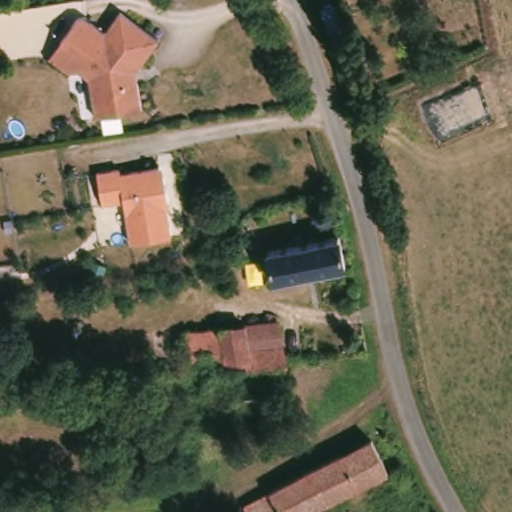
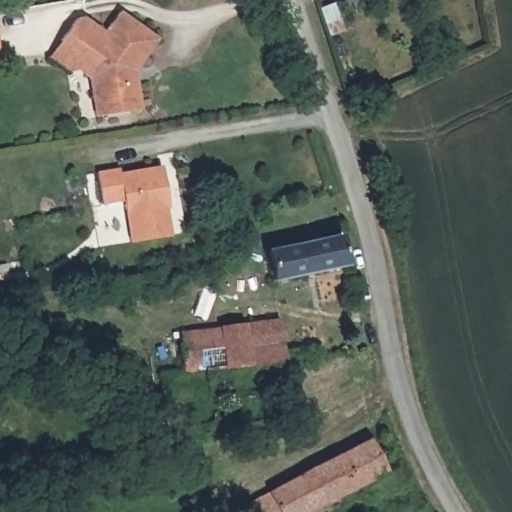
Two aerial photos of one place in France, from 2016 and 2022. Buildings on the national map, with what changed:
unchanged [(88,12),(108,31),(129,9),(162,40),(137,67),(142,104),(95,112),(86,57),(65,38),(88,12)]
unchanged [(126,165),(126,168),(162,162),(163,169),(167,169),(170,199),(167,200),(172,235),(132,241),(127,200),(109,203),(105,168),(126,165)]
unchanged [(342,237),(350,267),(276,287),(270,256),(342,237)]
unchanged [(230,372),(237,412),(221,415),(215,390),(212,371),(189,375),(183,332),(222,328),(250,325),(285,321),(292,364),(230,372)]
unchanged [(388,431),(405,462),(387,472),(327,503),(311,471),(372,440),(388,431)]
unchanged [(310,512),(249,512),(245,504),(311,471),(327,503),(310,512)]

